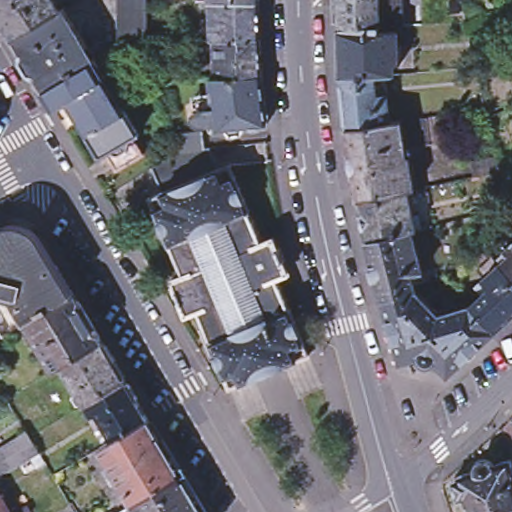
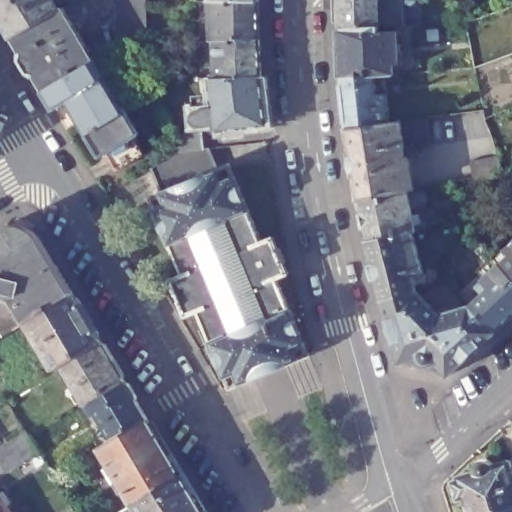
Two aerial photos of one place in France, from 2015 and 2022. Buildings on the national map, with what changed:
unchanged [(60,17),(13,44),(0,22),(0,0),(50,0),(60,17)]
unchanged [(117,0),(146,0),(146,1),(147,30),(143,32),(117,47),(117,0)]
unchanged [(259,7),(210,7),(211,0),(259,0),(259,7)]
unchanged [(404,27),(379,27),(379,32),(397,32),(397,64),(392,65),(392,76),(374,77),(341,80),(339,29),(338,0),(403,0),(404,27)]
unchanged [(259,7),(260,45),(214,46),(212,46),(210,7),(259,7)]
unchanged [(95,66),(44,96),(13,44),(60,17),(64,14),(95,66)]
unchanged [(260,45),(262,82),(217,85),(214,46),(260,45)]
unchanged [(116,177),(106,159),(101,162),(67,108),(55,115),(44,96),(95,66),(139,139),(134,142),(144,160),(116,177)]
unchanged [(377,97),(385,96),(389,124),(346,130),(341,80),(374,77),(377,97)]
unchanged [(216,137),(210,85),(217,85),(262,82),(267,132),(216,137)]
unchanged [(413,190),(405,191),(359,201),(346,130),(389,124),(400,122),(414,121),(427,119),(441,117),(445,145),(430,147),(417,149),(405,151),(405,159),(409,158),(413,190)]
unchanged [(174,136),(202,132),(204,149),(210,148),(220,171),(162,195),(150,169),(178,151),(174,136)]
unchanged [(472,178),(469,162),(497,157),(502,172),(472,178)]
unchanged [(230,166),(262,244),(274,240),(289,275),(277,280),(310,356),(230,390),(197,313),(187,317),(172,282),(183,278),(150,200),(162,195),(220,171),(230,166)]
unchanged [(414,232),(410,232),(367,243),(359,201),(405,191),(414,232)]
unchanged [(15,230),(20,230),(24,232),(29,235),(32,238),(50,269),(55,266),(73,297),(27,324),(13,300),(0,297),(0,235),(7,231),(15,230)]
unchanged [(367,243),(410,232),(422,272),(411,276),(416,291),(384,302),(367,243)]
unchanged [(499,265),(507,257),(503,252),(512,244),(512,279),(499,265)]
unchanged [(482,295),(475,287),(499,265),(512,279),(512,317),(495,332),(470,306),(482,295)]
unchanged [(470,306),(495,332),(448,376),(435,362),(431,365),(427,366),(424,365),(421,362),(417,357),(400,362),(384,302),(416,291),(416,292),(438,316),(470,306)]
unchanged [(63,367),(55,371),(27,324),(73,297),(102,343),(63,367)]
unchanged [(0,341),(0,335),(2,339),(0,341)]
unchanged [(102,343),(125,382),(86,406),(63,367),(102,343)]
unchanged [(125,382),(147,421),(114,442),(97,415),(93,417),(86,406),(125,382)]
unchanged [(134,505),(100,449),(114,442),(147,421),(181,477),(134,505)]
unchanged [(5,460),(0,452),(0,449),(31,430),(37,438),(37,441),(44,452),(11,471),(5,460)]
unchanged [(474,470),(475,468),(475,467),(475,466),(475,465),(476,464),(477,463),(479,462),(480,461),(482,461),(483,461),(484,461),(485,461),(487,461),(488,462),(490,462),(491,464),(492,465),(492,466),(510,460),(512,468),(512,509),(502,512),(468,512),(464,500),(457,502),(452,482),(457,480),(457,477),(474,471),(474,470)]
unchanged [(181,477),(202,512),(138,512),(134,505),(181,477)]
unchanged [(0,512),(0,497),(9,512),(0,512)]
unchanged [(502,512),(512,509),(512,512),(502,512)]

